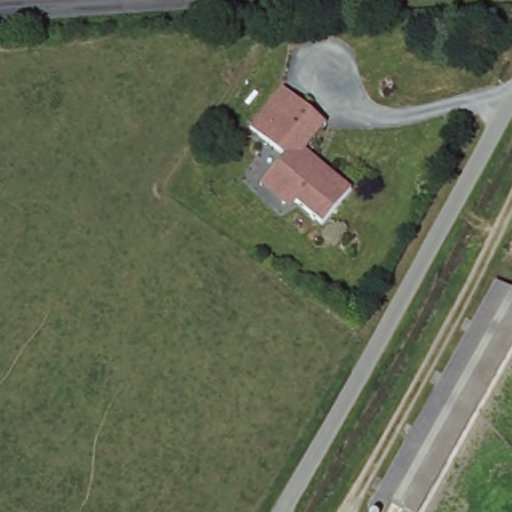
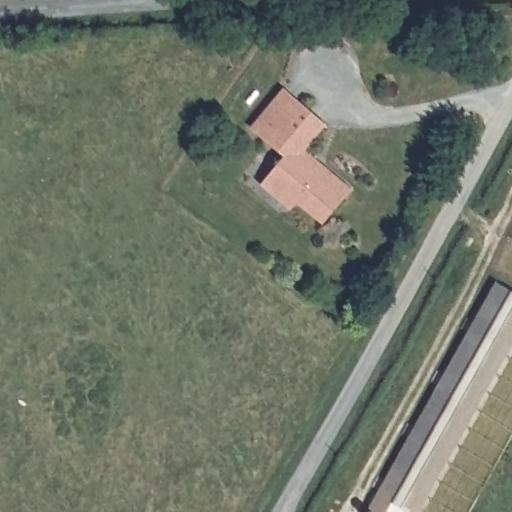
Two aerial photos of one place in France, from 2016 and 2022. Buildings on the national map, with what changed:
unchanged [(328,125),(309,150),(353,188),(324,224),(298,202),(293,208),(261,183),(286,156),(251,125),(282,86),(328,125)]
unchanged [(497,282),(512,290),(512,345),(417,512),(409,512),(391,502),(385,512),(372,512),(369,510),(497,282)]

